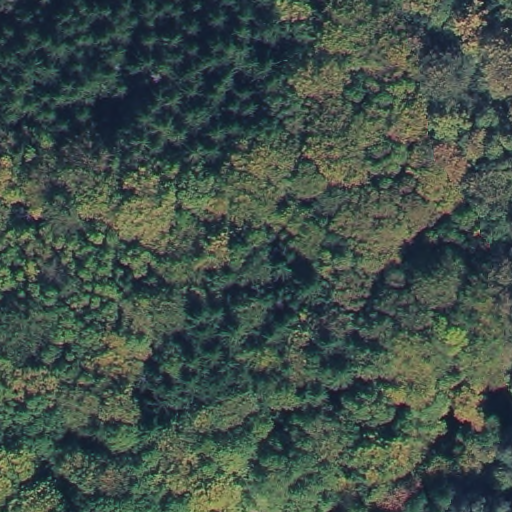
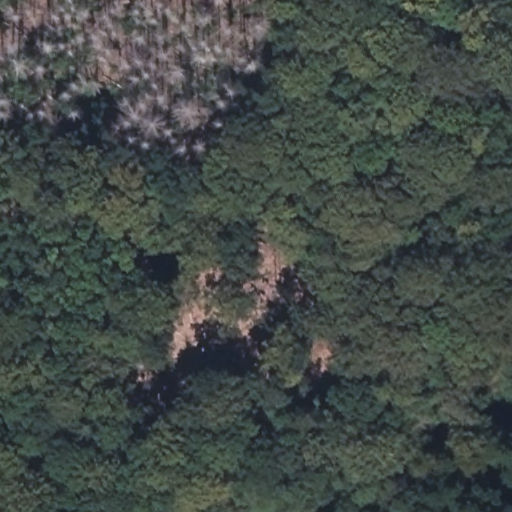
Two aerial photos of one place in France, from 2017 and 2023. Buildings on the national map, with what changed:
[]

